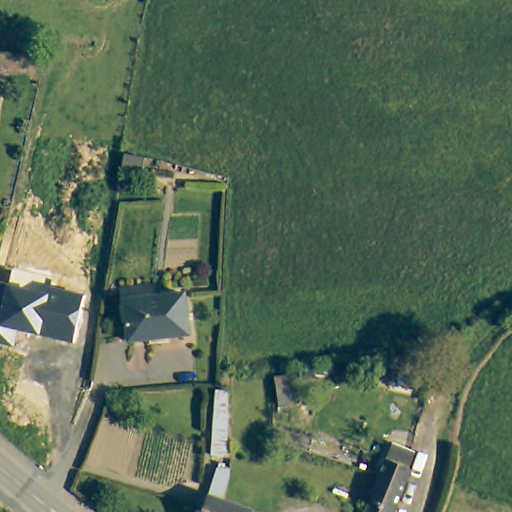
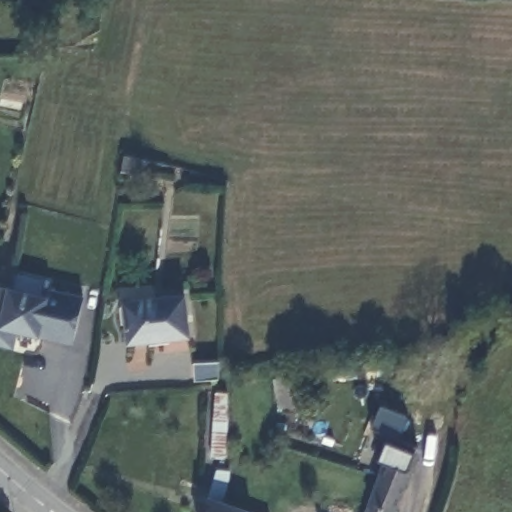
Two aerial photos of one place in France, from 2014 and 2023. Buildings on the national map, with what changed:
unchanged [(0,344),(0,285),(32,291),(33,282),(84,295),(73,343),(17,330),(14,347),(0,344)]
unchanged [(190,330),(130,341),(123,301),(182,291),(190,330)]
unchanged [(382,467),(388,446),(413,451),(407,475),(396,512),(369,512),(378,479),(382,467)]
unchanged [(216,470),(231,471),(227,504),(250,512),(205,512),(212,497),(216,470)]

